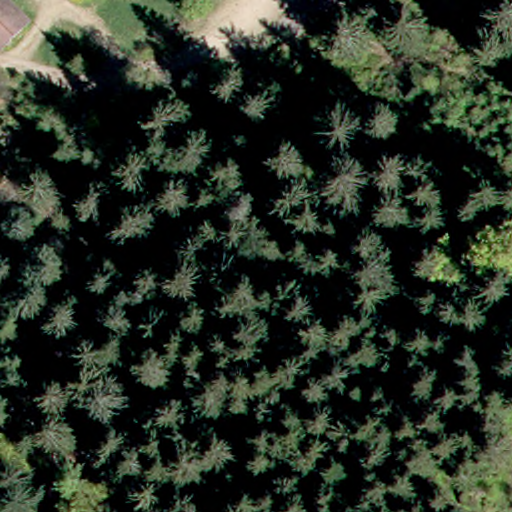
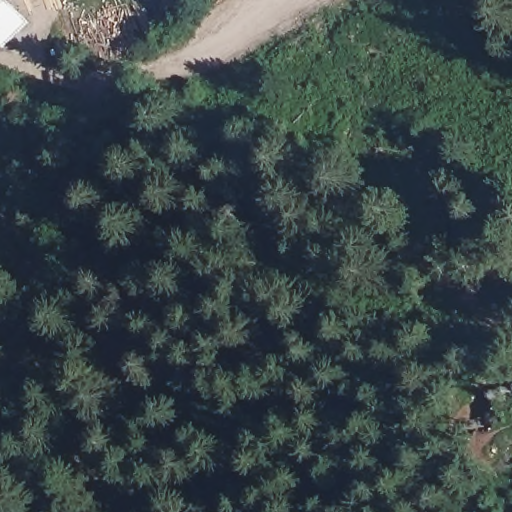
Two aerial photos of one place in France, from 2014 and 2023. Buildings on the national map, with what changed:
unchanged [(0,0),(7,0),(22,13),(5,35),(2,39),(0,38),(0,0)]

